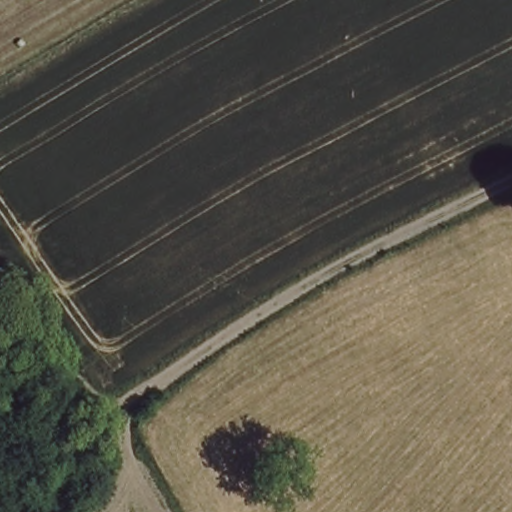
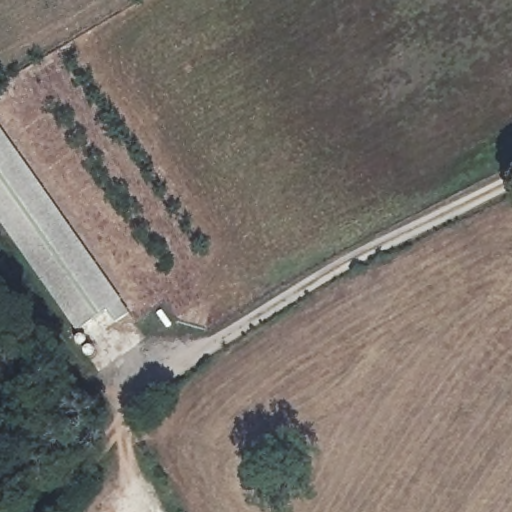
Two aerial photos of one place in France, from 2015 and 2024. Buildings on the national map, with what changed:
new [(114,322),(105,308),(75,330),(0,224),(0,130),(127,311),(114,322)]

